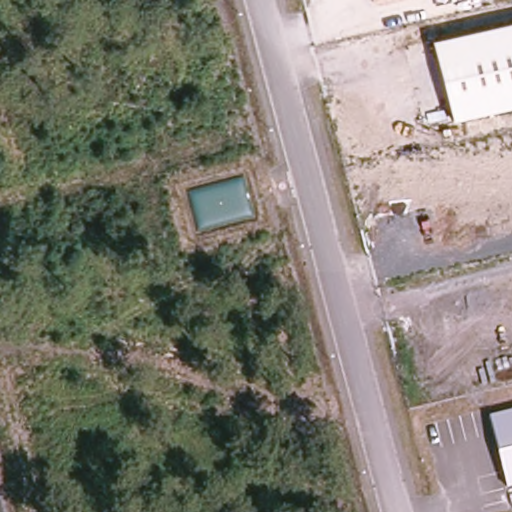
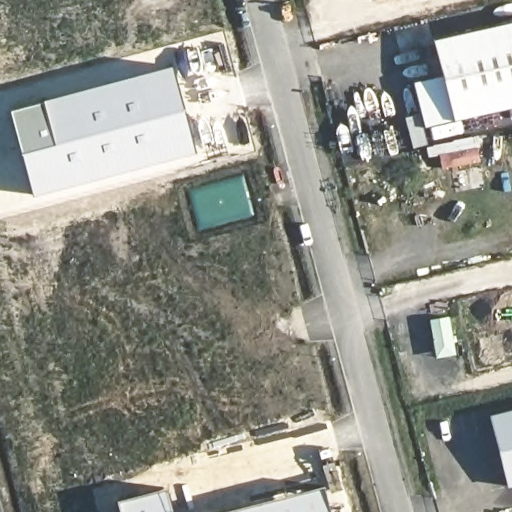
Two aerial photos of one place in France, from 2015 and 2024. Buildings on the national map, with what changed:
unchanged [(374,5),(373,0),(397,0),(374,5)]
unchanged [(454,120),(434,40),(512,23),(512,107),(454,120)]
new [(195,151),(32,195),(21,153),(9,108),(43,100),(172,64),(195,151)]
unchanged [(509,487),(491,415),(512,410),(512,487),(509,487)]
new [(330,512),(221,512),(323,486),(330,512)]
new [(167,487),(172,512),(119,512),(116,500),(167,487)]

